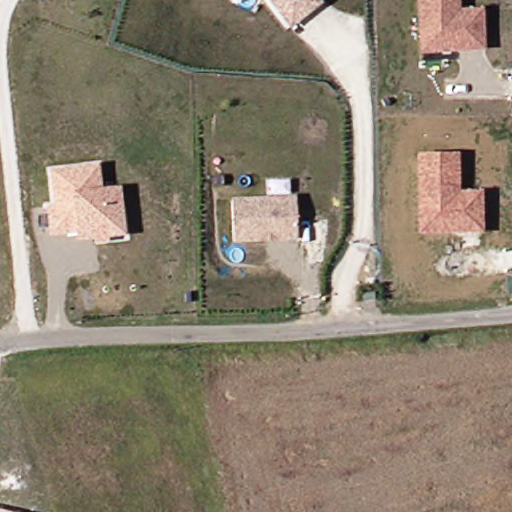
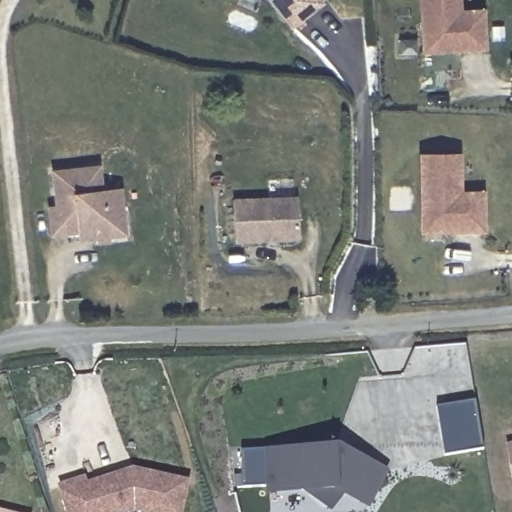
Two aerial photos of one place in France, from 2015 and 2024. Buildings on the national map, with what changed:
unchanged [(287,18),(272,0),(321,0),(323,3),(306,16),(293,26),(287,18)]
unchanged [(486,50),(422,53),(418,0),(462,0),(462,8),(483,7),(486,50)]
unchanged [(485,232),(420,234),(417,154),(460,152),(461,190),(485,190),(485,232)]
unchanged [(79,236),(77,228),(51,231),(47,204),(55,203),(50,168),(96,163),(101,199),(120,204),(124,231),(79,236)]
unchanged [(262,201),(297,199),(300,240),(264,242),(235,243),(232,203),(262,201)]
new [(476,399),(484,448),(445,454),(437,405),(476,399)]
new [(512,442),(512,484),(507,443),(512,442)]
new [(369,503),(363,501),(345,491),(332,506),(307,487),(271,490),(271,484),(244,485),(242,448),(270,447),(338,445),(354,453),(381,467),(386,470),(369,503)]
new [(125,469),(135,467),(147,470),(190,479),(182,512),(132,512),(126,510),(120,512),(70,512),(61,483),(86,475),(88,481),(125,469)]
unchanged [(7,512),(0,512),(0,510),(7,512)]

